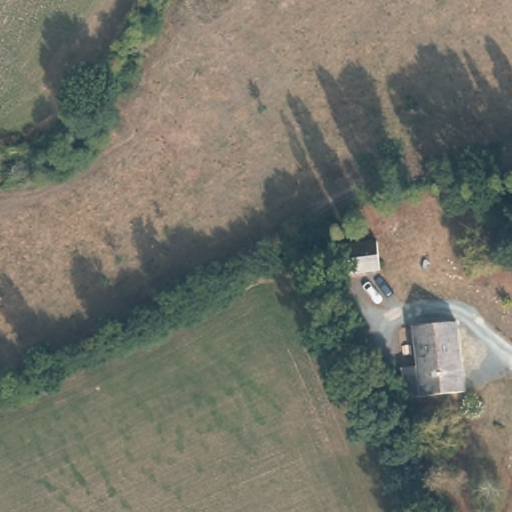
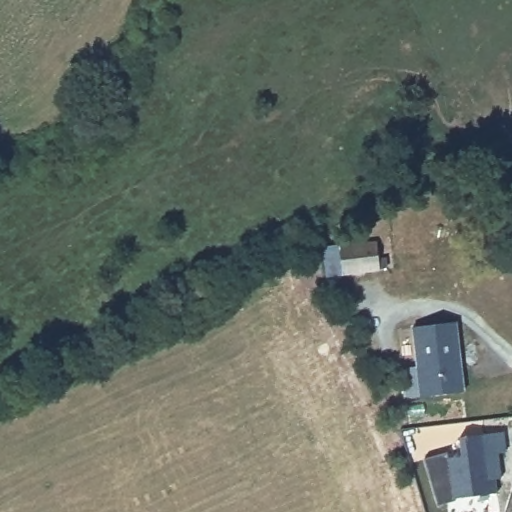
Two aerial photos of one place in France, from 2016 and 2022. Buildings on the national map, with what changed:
unchanged [(349,243),(386,239),(388,268),(352,272),(335,274),(333,244),(349,243)]
unchanged [(468,390),(405,400),(401,376),(416,373),(408,331),(458,324),(468,390)]
new [(449,456),(462,455),(460,436),(502,431),(505,451),(499,452),(502,478),(495,479),(497,493),(455,499),(437,504),(424,457),(448,452),(449,456)]

